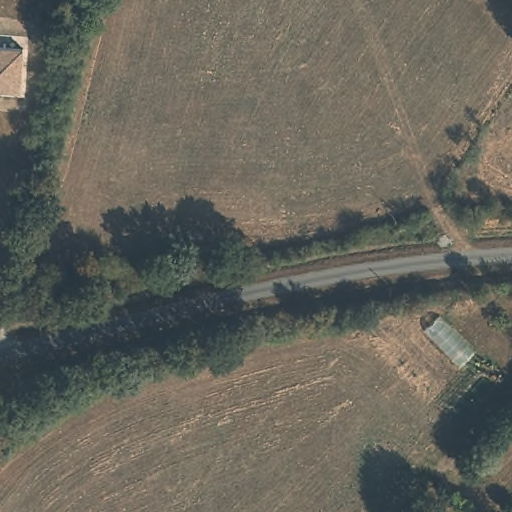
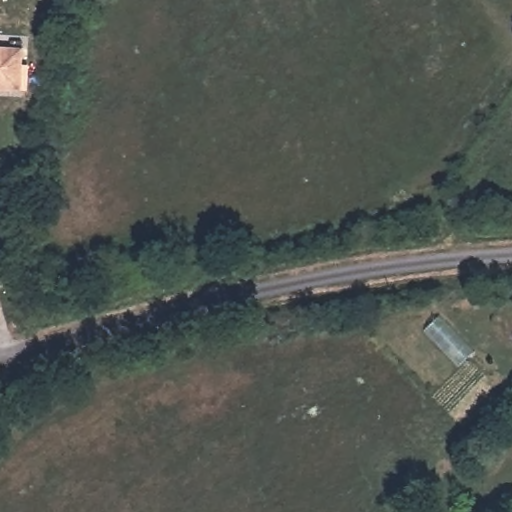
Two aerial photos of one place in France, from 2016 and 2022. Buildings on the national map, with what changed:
unchanged [(24,49),(21,94),(0,92),(0,48),(24,49)]

